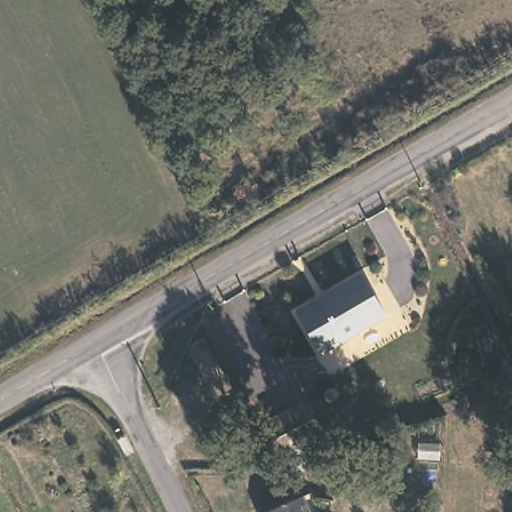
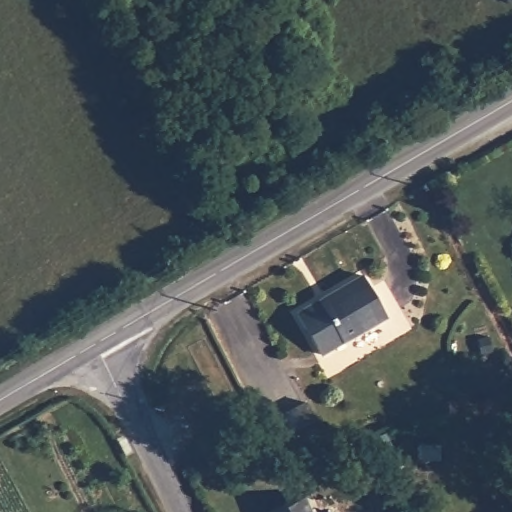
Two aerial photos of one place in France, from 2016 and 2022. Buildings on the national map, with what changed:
unchanged [(385,316),(320,351),(296,310),(361,273),(385,316)]
unchanged [(333,431),(299,452),(279,420),(312,400),(333,431)]
unchanged [(265,512),(302,496),(309,512),(265,512)]

